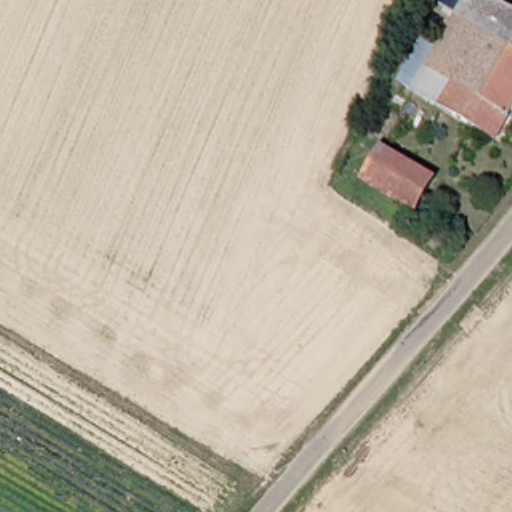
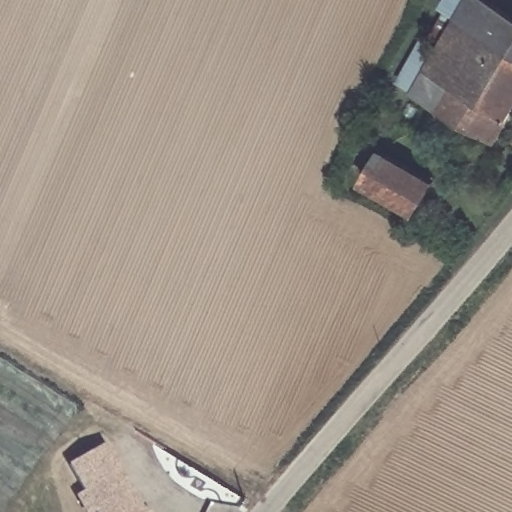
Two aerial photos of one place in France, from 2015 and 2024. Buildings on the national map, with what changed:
unchanged [(484,136),(402,74),(409,65),(418,71),(471,0),(497,0),(512,12),(512,103),(510,101),(484,136)]
unchanged [(433,181),(416,210),(363,180),(379,151),(433,181)]
new [(95,512),(94,512),(83,512),(75,501),(83,495),(66,470),(99,449),(139,512),(95,512)]

